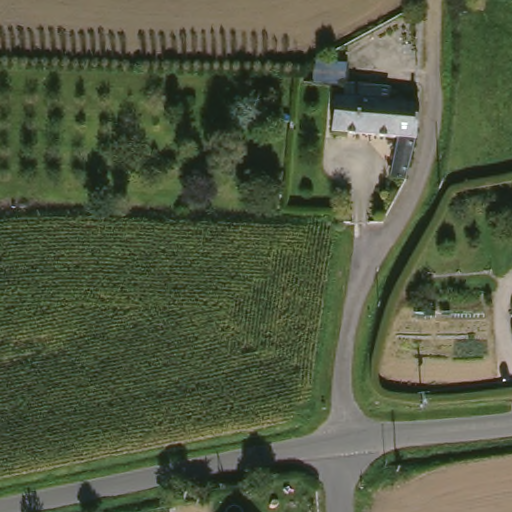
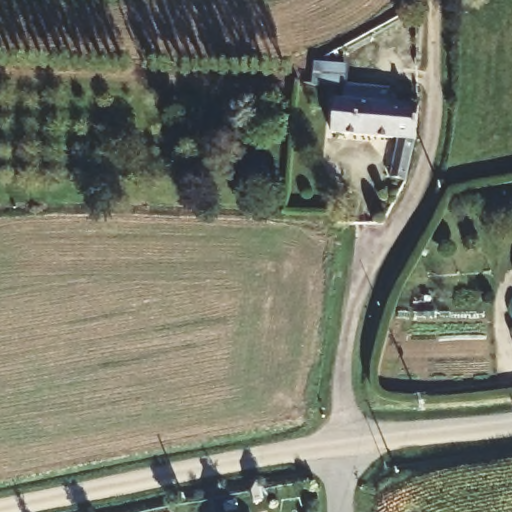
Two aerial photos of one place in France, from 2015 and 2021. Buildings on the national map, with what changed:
unchanged [(351,60),(349,81),(394,85),(393,98),(423,101),(420,135),(411,176),(394,172),(402,134),(336,128),(339,93),(348,94),(349,81),(332,80),(318,79),(319,57),(351,60)]

